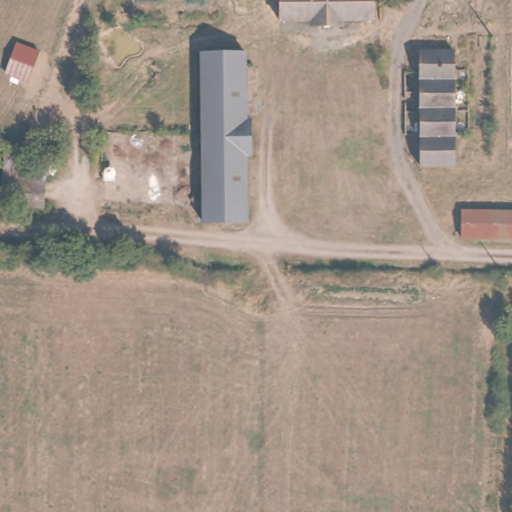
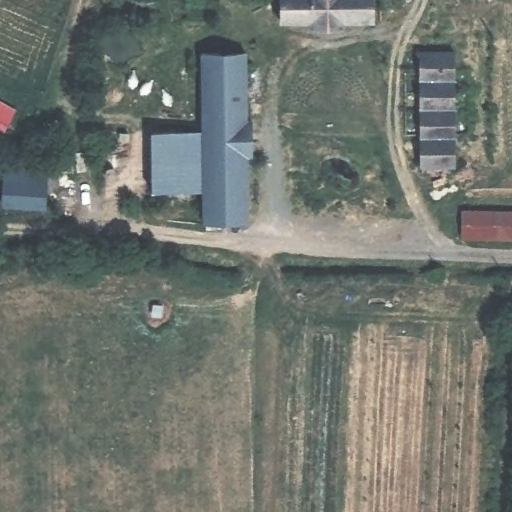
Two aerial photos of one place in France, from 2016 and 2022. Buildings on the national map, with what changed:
unchanged [(375,3),(375,26),(343,26),(343,23),(280,23),(280,0),(375,0),(375,3)]
unchanged [(454,50),(454,70),(454,128),(454,167),(419,167),(419,51),(454,50)]
unchanged [(203,53),(244,53),(246,119),(250,119),(251,156),(248,156),(247,223),(204,222),(203,155),(203,61),(203,53)]
new [(203,130),(203,155),(204,191),(152,191),(152,130),(203,130)]
unchanged [(46,181),(45,206),(3,205),(4,179),(46,181)]
unchanged [(512,243),(466,242),(467,214),(512,215),(512,243)]

